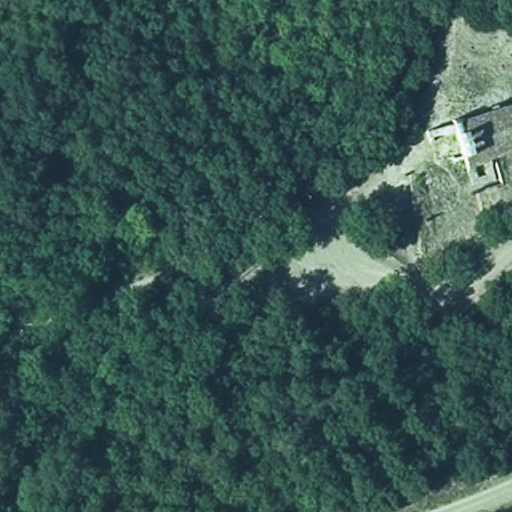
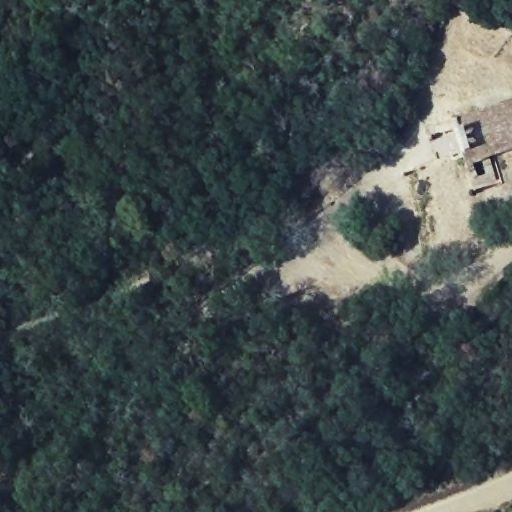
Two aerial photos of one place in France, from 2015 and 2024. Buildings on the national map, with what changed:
unchanged [(512,155),(467,167),(445,121),(512,99),(512,155)]

